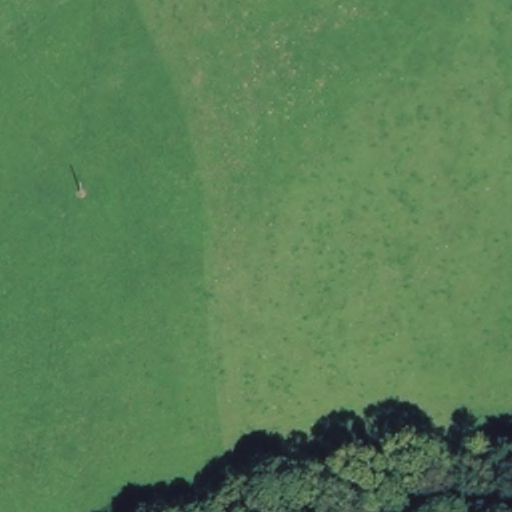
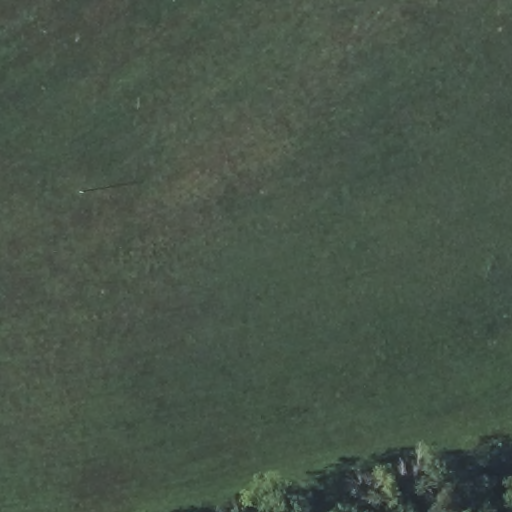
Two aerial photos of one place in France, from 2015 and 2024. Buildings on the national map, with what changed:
[]

